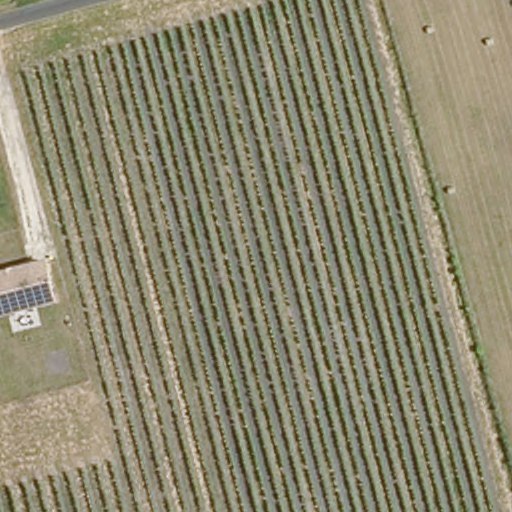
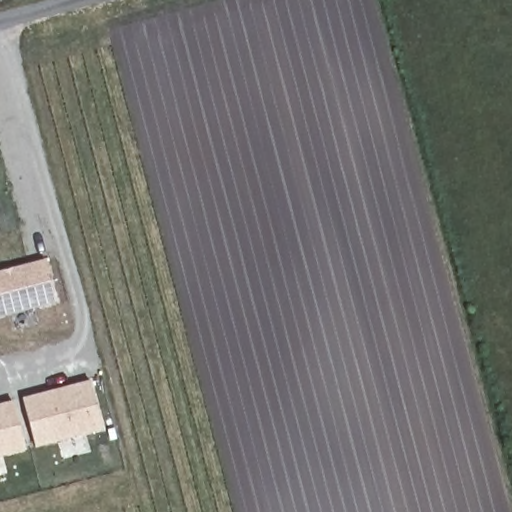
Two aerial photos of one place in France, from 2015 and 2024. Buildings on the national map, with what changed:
unchanged [(0,272),(48,260),(59,304),(0,318),(0,272)]
new [(89,379),(101,425),(34,443),(21,397),(89,379)]
new [(24,446),(0,452),(0,402),(11,399),(24,446)]

